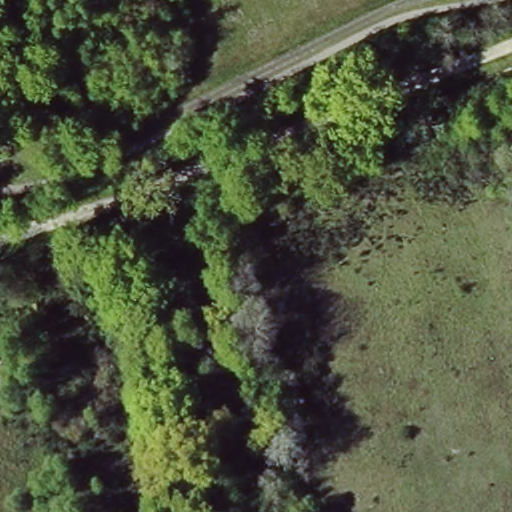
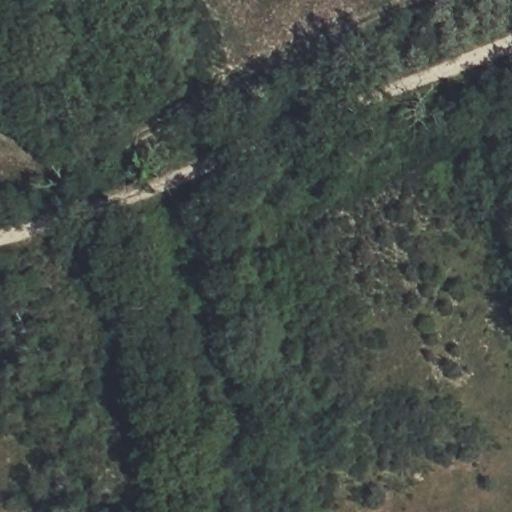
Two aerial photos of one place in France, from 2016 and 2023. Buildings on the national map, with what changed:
[]

